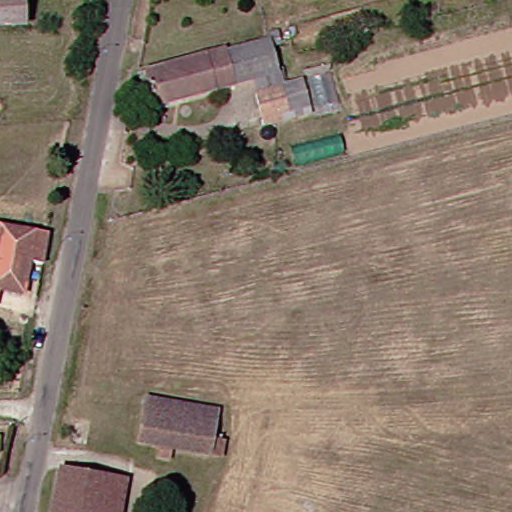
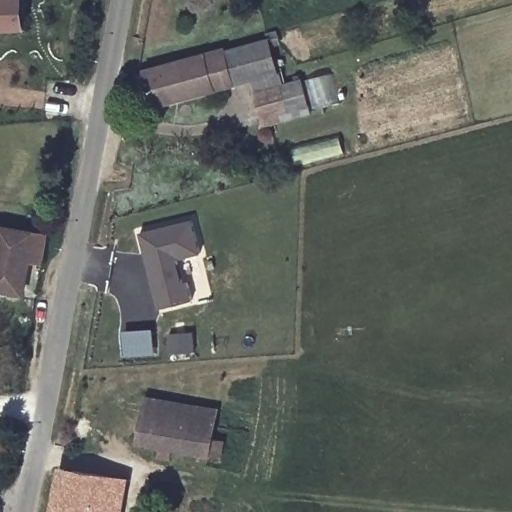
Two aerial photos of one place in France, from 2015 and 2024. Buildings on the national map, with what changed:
unchanged [(0,28),(0,0),(30,0),(30,26),(0,28)]
unchanged [(272,38),(279,71),(159,109),(150,73),(272,38)]
unchanged [(264,121),(258,92),(284,88),(290,117),(264,121)]
new [(191,220),(200,254),(177,259),(183,284),(188,283),(192,300),(158,308),(139,231),(191,220)]
unchanged [(38,233),(53,235),(48,269),(34,266),(26,299),(0,292),(0,227),(5,228),(38,233)]
unchanged [(171,421),(168,449),(141,445),(144,402),(214,408),(214,425),(171,421)]
unchanged [(224,429),(219,459),(180,453),(180,463),(164,462),(168,449),(171,421),(214,425),(224,429)]
unchanged [(105,512),(58,512),(62,475),(106,482),(105,512)]
unchanged [(123,485),(122,512),(105,512),(106,482),(123,485)]

